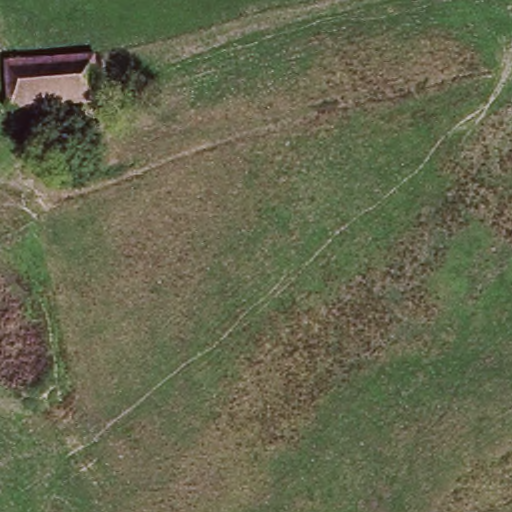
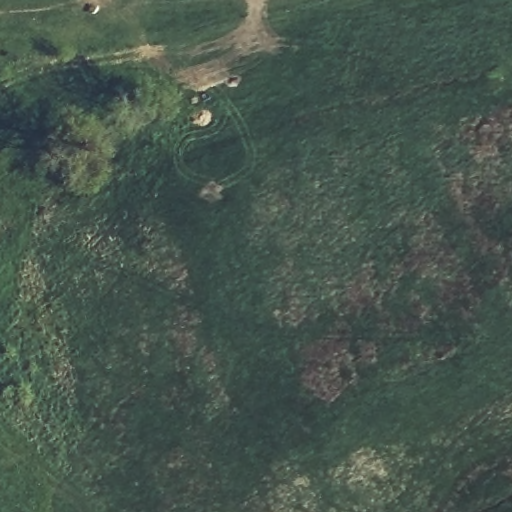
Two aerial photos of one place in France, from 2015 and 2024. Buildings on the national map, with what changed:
demolished [(96,109),(8,114),(5,63),(93,60),(95,105),(96,109)]

